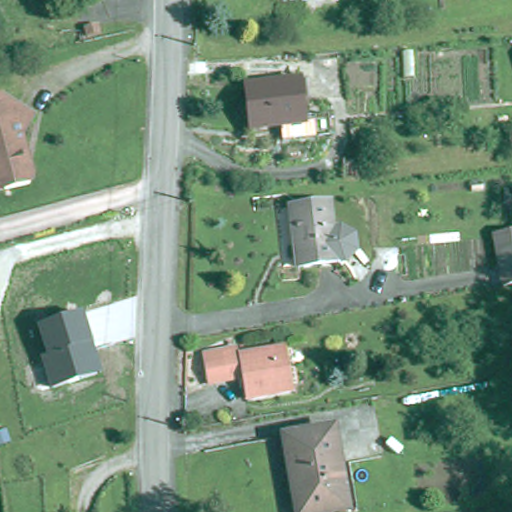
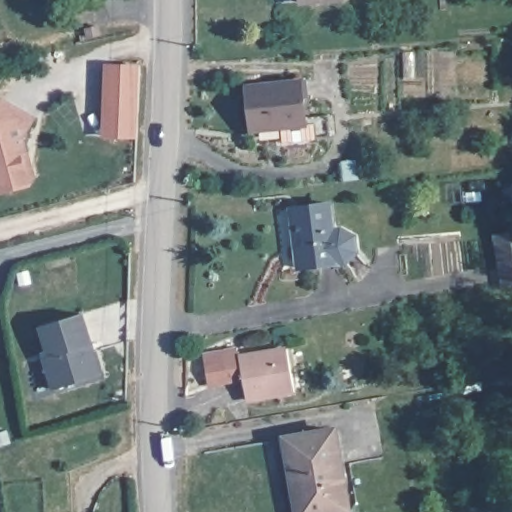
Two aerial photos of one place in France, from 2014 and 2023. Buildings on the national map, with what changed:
unchanged [(301,0),(320,0),(302,2),(301,0)]
new [(111,63),(140,65),(139,110),(137,135),(107,134),(109,109),(111,63)]
unchanged [(307,138),(307,124),(252,131),(247,86),(302,80),(306,117),(330,114),(332,135),(307,138)]
unchanged [(19,145),(22,160),(17,161),(21,171),(27,176),(29,184),(27,188),(2,196),(0,196),(0,107),(30,123),(19,145)]
unchanged [(300,268),(292,208),(330,203),(339,263),(300,268)]
unchanged [(499,251),(496,237),(512,234),(512,285),(505,286),(499,251)]
unchanged [(103,376),(51,392),(40,357),(47,356),(38,327),(86,315),(103,376)]
unchanged [(247,394),(243,373),(214,377),(209,347),(238,342),(240,352),(287,344),(295,386),(247,394)]
unchanged [(298,510),(285,437),(335,429),(349,511),(343,512),(298,512),(298,510)]

